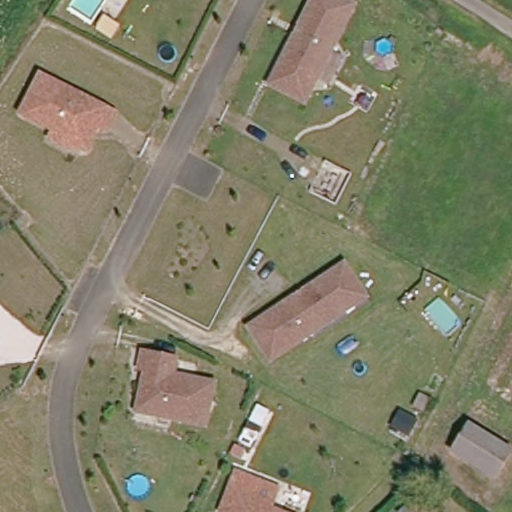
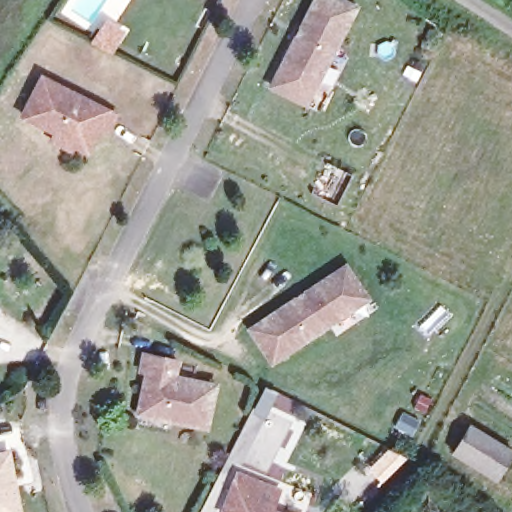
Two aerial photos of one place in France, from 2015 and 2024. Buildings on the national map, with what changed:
unchanged [(268,83),(310,0),(344,0),(352,4),(303,101),(268,83)]
unchanged [(52,137),(56,129),(22,112),(42,74),(114,111),(105,127),(95,122),(93,128),(94,132),(86,148),(74,142),(72,147),(52,137)]
unchanged [(247,328),(331,275),(344,266),(365,299),(352,307),(268,360),(247,328)]
unchanged [(205,428),(171,421),(172,417),(137,409),(145,372),(139,371),(143,354),(176,361),(173,377),(214,386),(205,428)]
unchanged [(471,422),(512,449),(512,459),(498,485),(449,456),(471,422)]
new [(12,481),(13,487),(18,512),(0,512),(0,452),(6,450),(12,481)]
unchanged [(223,504),(229,489),(271,505),(269,510),(274,512),(220,512),(223,504)]

